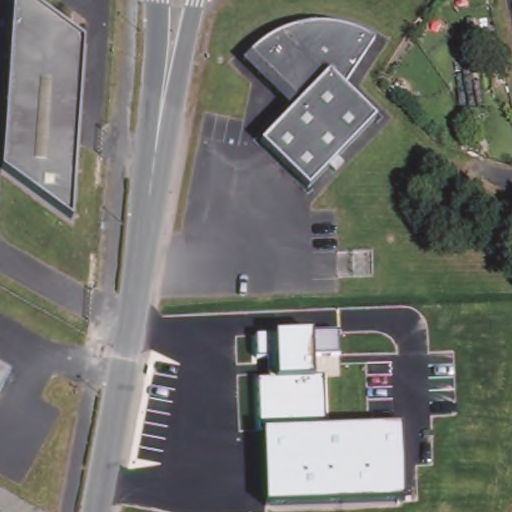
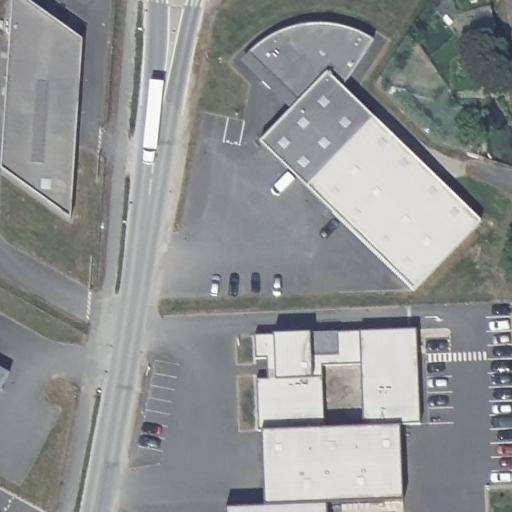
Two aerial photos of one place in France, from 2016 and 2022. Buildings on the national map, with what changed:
unchanged [(71,220),(1,170),(11,0),(14,0),(82,49),(71,220)]
unchanged [(308,187),(260,141),(298,102),(278,82),(271,90),(262,80),(269,74),(248,54),(253,49),(257,45),(262,41),(267,39),(271,35),(276,34),(281,31),(286,29),(290,28),(296,26),(301,25),(305,25),(311,24),(316,24),(321,24),(327,24),(332,25),(337,25),(342,26),(347,27),(352,29),(357,31),(366,35),(374,40),(343,86),(375,117),(308,187)]
new [(375,117),(483,219),(413,290),(308,187),(375,117)]
new [(361,362),(322,364),(322,377),(312,378),(311,356),(338,355),(337,332),(360,331),(416,329),(420,422),(399,425),(366,426),(361,362)]
unchanged [(276,380),(275,357),(257,357),(256,336),(337,332),(338,355),(311,356),(312,378),(322,377),(324,427),(399,425),(402,497),(266,505),(263,433),(259,433),(257,380),(276,380)]
unchanged [(10,368),(0,385),(0,363),(10,368)]
new [(266,505),(326,501),(326,512),(227,512),(227,508),(266,505)]

